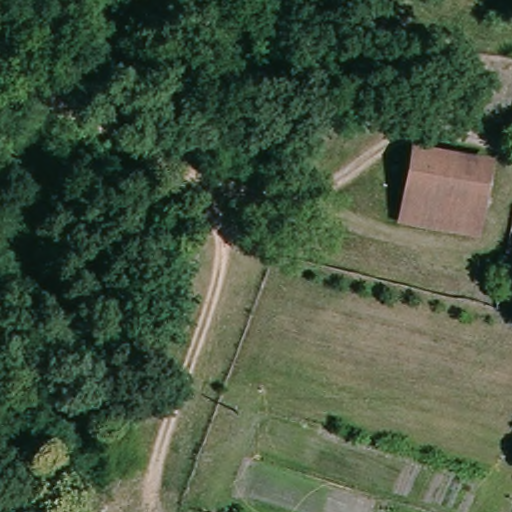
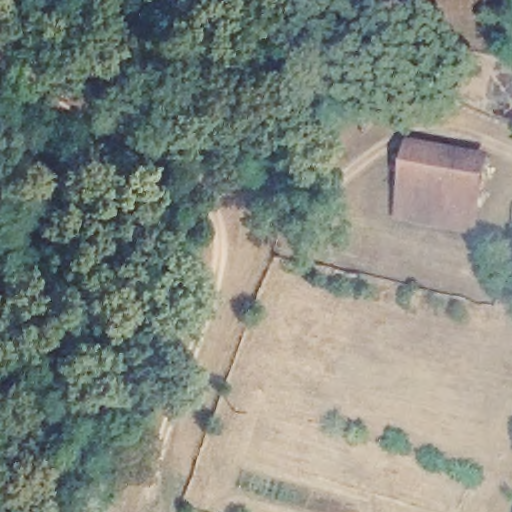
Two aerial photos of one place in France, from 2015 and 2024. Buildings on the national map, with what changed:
unchanged [(495,156),(480,234),(402,219),(417,141),(495,156)]

